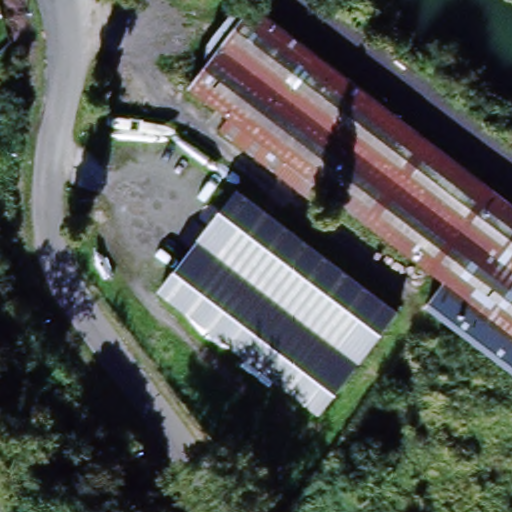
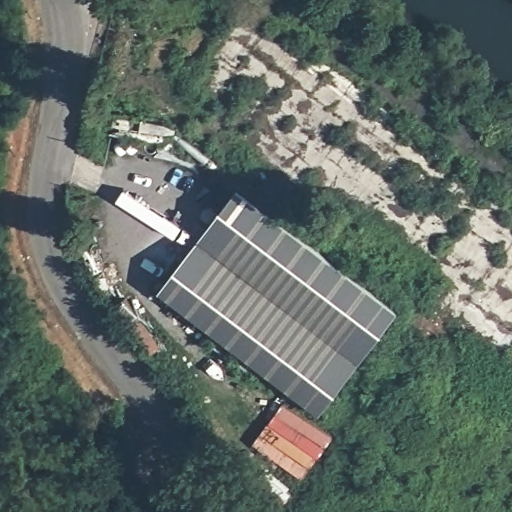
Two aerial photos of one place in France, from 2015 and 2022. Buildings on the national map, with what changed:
demolished [(441,284),(318,189),(308,203),(217,131),(225,120),(187,89),(201,69),(204,46),(216,46),(218,28),(235,26),(233,10),(236,8),(249,9),(512,212),(512,376),(422,308),(441,284)]
unchanged [(161,289),(236,189),(395,309),(320,410),(161,289)]

